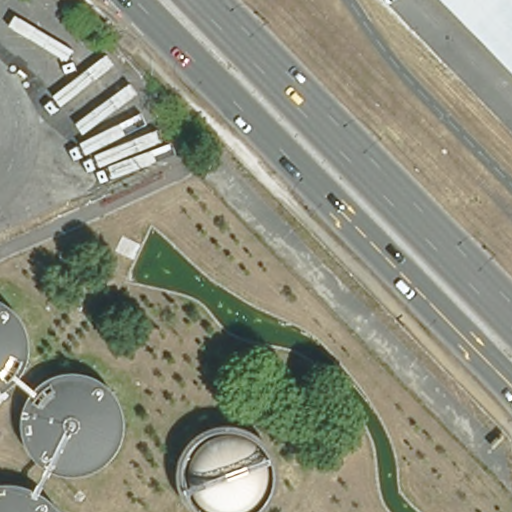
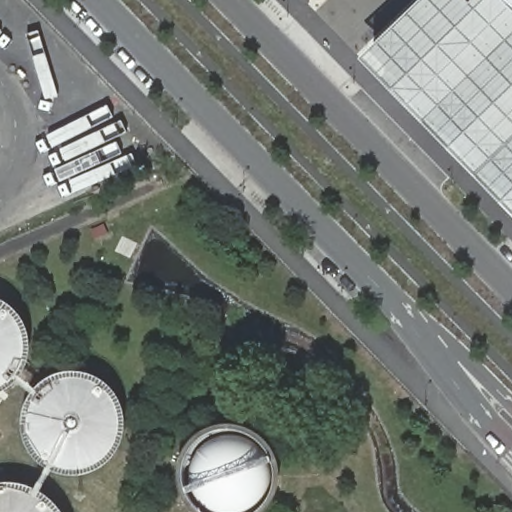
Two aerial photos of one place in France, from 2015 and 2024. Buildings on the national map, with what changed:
new [(308,4),(304,0),(312,0),(308,4)]
new [(414,112),(412,114),(406,108),(401,113),(377,89),(382,84),(375,77),(386,66),(373,53),(409,16),(426,0),(512,0),(512,213),(414,112)]
demolished [(469,0),(512,0),(512,45),(469,0)]
demolished [(141,243),(154,275),(137,283),(124,250),(141,243)]
demolished [(147,325),(169,314),(184,347),(162,357),(147,325)]

